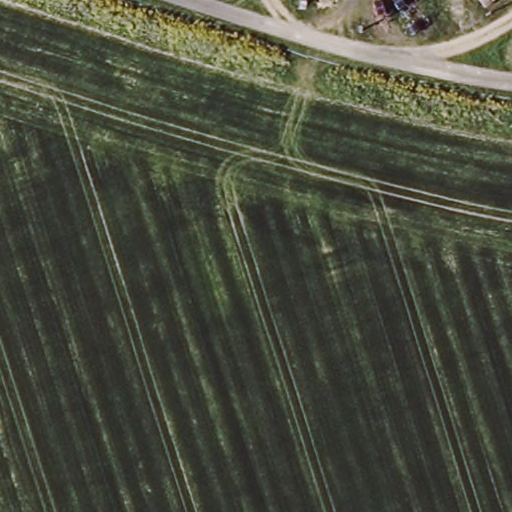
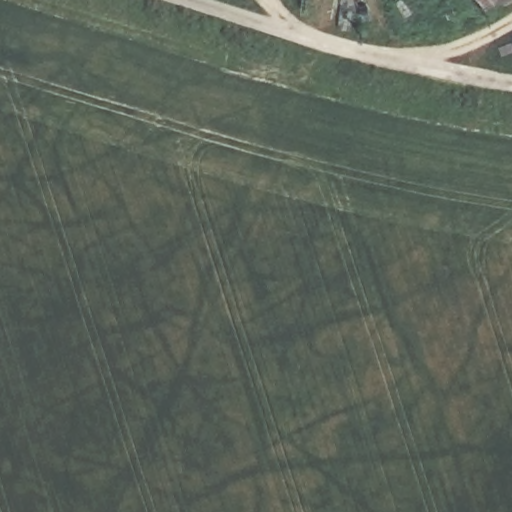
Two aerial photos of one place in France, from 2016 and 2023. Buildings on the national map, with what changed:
unchanged [(480,0),(494,0),(485,7),(480,0)]
unchanged [(506,0),(508,0),(507,1),(506,0)]

